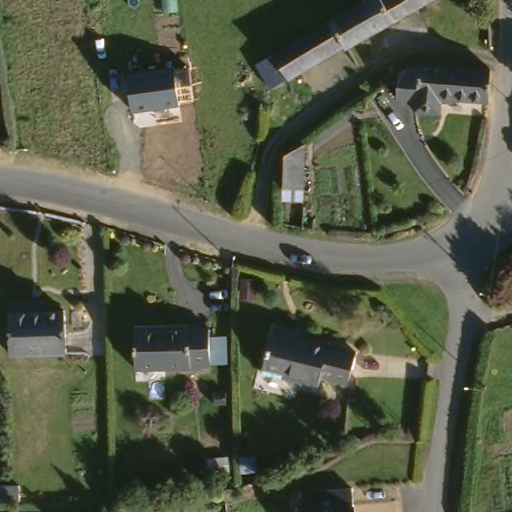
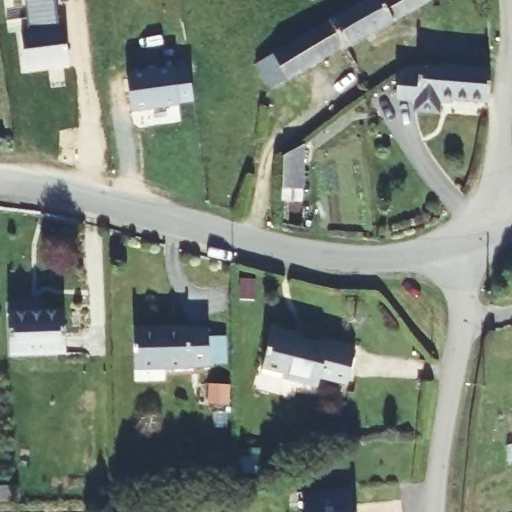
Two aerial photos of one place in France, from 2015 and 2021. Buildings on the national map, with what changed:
new [(56,13),(61,13),(65,49),(21,54),(17,18),(24,17),(22,0),(54,0),(56,13)]
unchanged [(259,69),(271,61),(279,55),(278,53),(301,39),(346,10),(349,9),(363,0),(427,0),(294,80),(289,72),(283,76),(279,70),(265,78),(260,71),(259,69)]
unchanged [(195,102),(179,104),(133,110),(127,75),(189,65),(195,102)]
unchanged [(417,70),(418,70),(493,73),(488,105),(439,102),(437,115),(416,113),(416,102),(397,100),(399,83),(417,70)]
unchanged [(286,156),(304,157),(303,185),(285,184),(286,156)]
unchanged [(65,308),(67,352),(14,353),(11,310),(65,308)]
unchanged [(303,327),(300,340),(331,347),(333,343),(361,349),(351,381),(323,373),(319,385),(265,369),(278,321),(303,327)]
unchanged [(192,324),(192,330),(213,330),(214,360),(193,360),(193,368),(139,370),(139,325),(192,324)]
unchanged [(233,444),(233,458),(216,458),(216,444),(233,444)]
unchanged [(356,512),(304,512),(304,491),(355,490),(356,512)]

